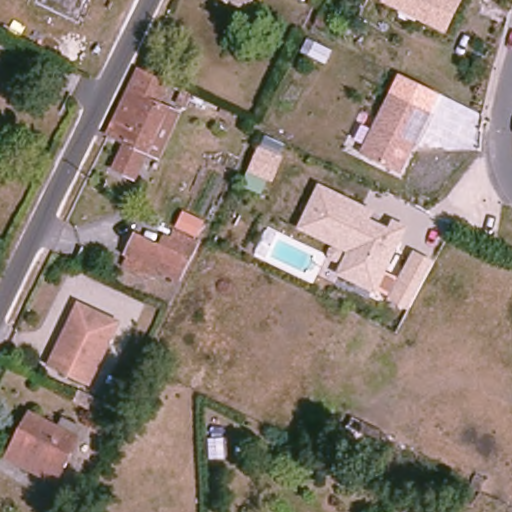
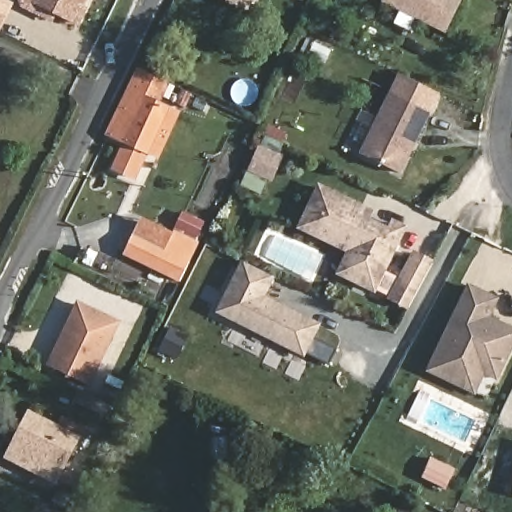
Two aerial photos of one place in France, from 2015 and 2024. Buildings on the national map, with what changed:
new [(87,0),(83,7),(87,9),(80,23),(37,1),(38,0),(87,0)]
unchanged [(253,0),(248,11),(224,0),(253,0)]
unchanged [(381,3),(376,0),(452,0),(455,1),(440,32),(381,3)]
unchanged [(165,84),(154,106),(167,113),(135,180),(114,170),(125,144),(109,136),(141,72),(165,84)]
unchanged [(395,177),(357,159),(386,97),(425,116),(395,177)]
new [(291,138),(270,186),(265,184),(260,195),(242,184),(268,128),(291,138)]
unchanged [(296,230),(316,185),(374,211),(371,219),(389,228),(392,220),(407,227),(374,294),(335,276),(345,253),(296,230)]
unchanged [(140,221),(198,247),(175,293),(116,264),(140,221)]
unchanged [(433,264),(408,307),(393,298),(415,257),(433,264)]
new [(276,280),(268,298),(323,325),(306,357),(219,314),(243,265),(276,280)]
new [(427,372),(468,284),(499,298),(490,317),(512,326),(512,353),(498,382),(485,375),(476,395),(427,372)]
unchanged [(61,342),(76,313),(112,331),(86,384),(61,371),(50,366),(61,342)]
unchanged [(104,405),(99,415),(69,402),(74,391),(104,405)]
unchanged [(56,427),(63,415),(83,424),(55,481),(15,463),(7,459),(21,430),(28,414),(56,427)]
new [(456,470),(446,490),(422,478),(431,459),(456,470)]

